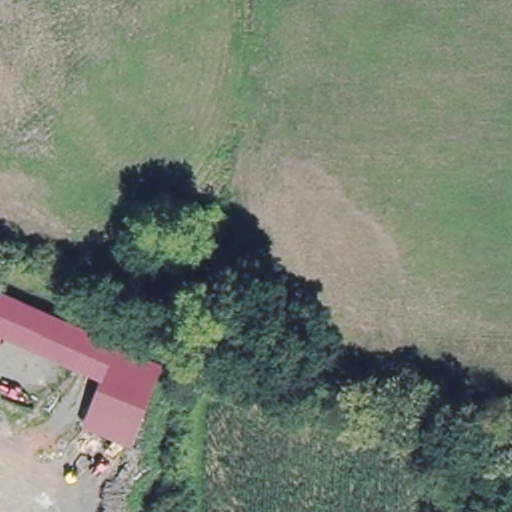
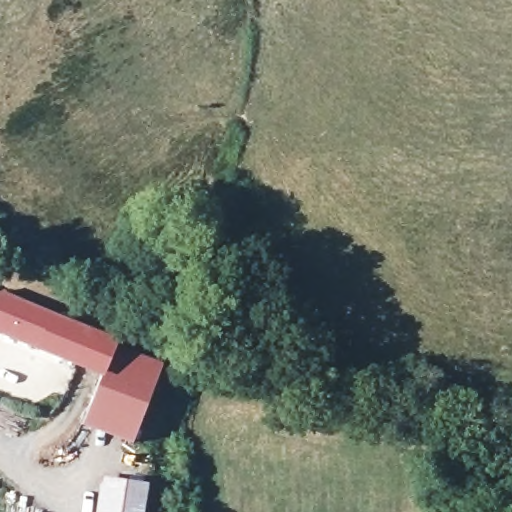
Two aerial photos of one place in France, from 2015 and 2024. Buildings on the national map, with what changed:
unchanged [(164,360),(132,443),(81,422),(100,378),(0,338),(0,298),(1,294),(164,360)]
new [(149,484),(144,512),(96,512),(102,477),(149,484)]

